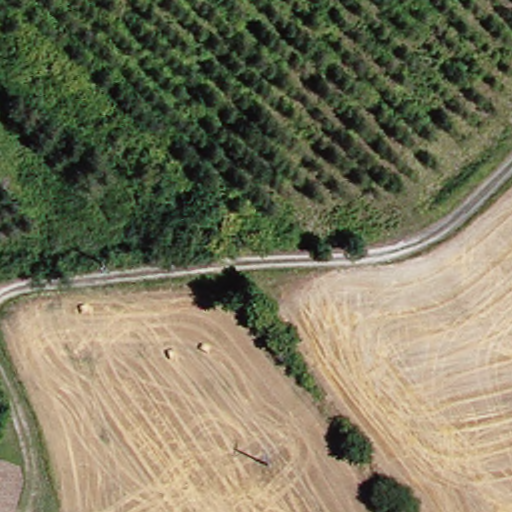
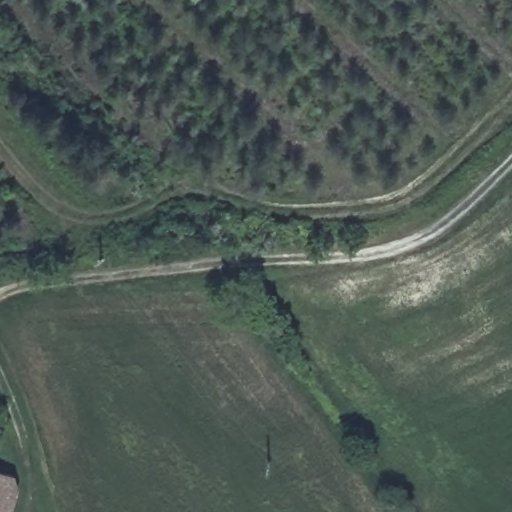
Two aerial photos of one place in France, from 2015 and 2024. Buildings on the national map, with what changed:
unchanged [(7,465),(7,481),(0,479),(0,463),(7,465)]
unchanged [(7,481),(13,486),(7,512),(0,512),(0,479),(7,481)]

